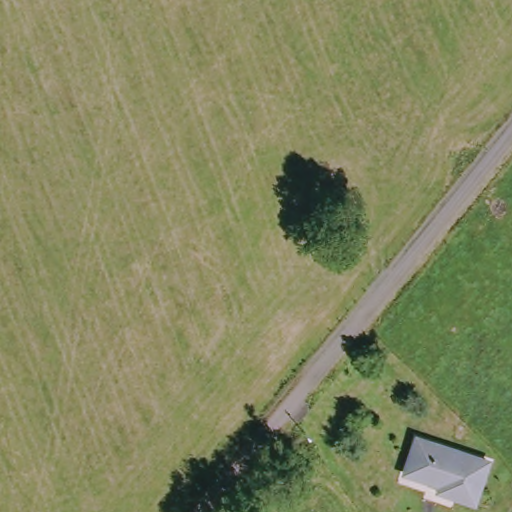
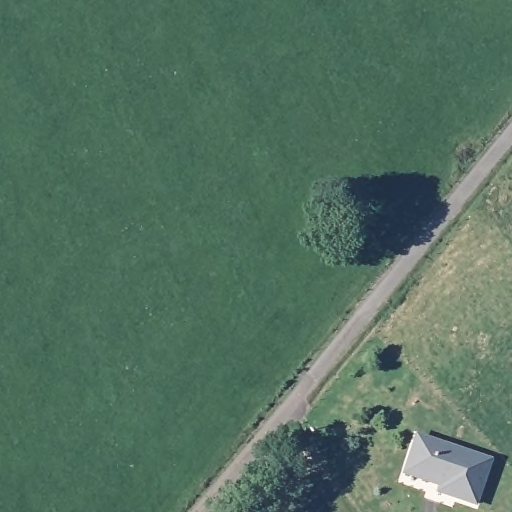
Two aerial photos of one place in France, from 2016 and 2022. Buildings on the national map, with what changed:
unchanged [(412,470),(421,437),(497,462),(484,504),(446,492),(446,491),(409,480),(412,470)]

